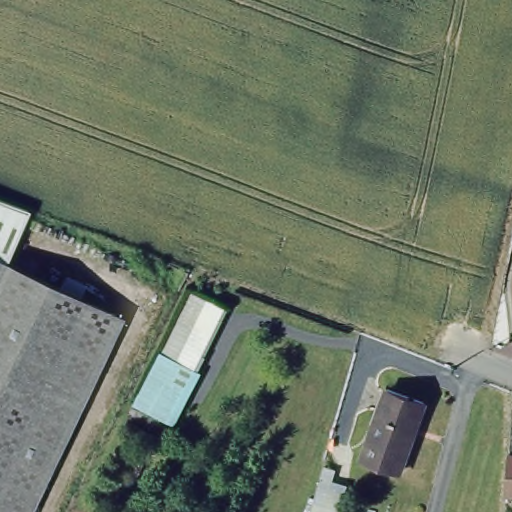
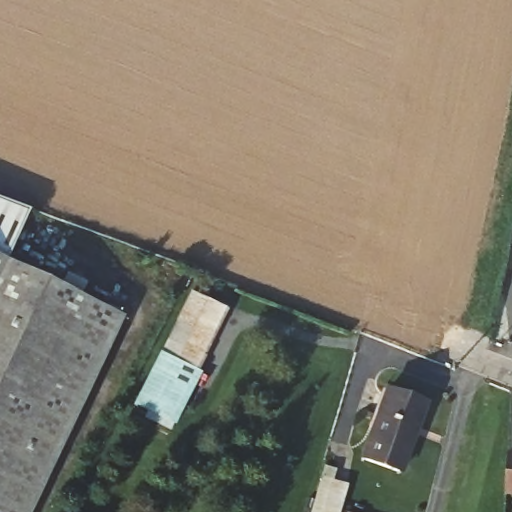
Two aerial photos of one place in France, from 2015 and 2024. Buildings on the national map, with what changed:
unchanged [(29,200),(5,253),(130,305),(34,512),(0,512),(0,189),(29,200)]
unchanged [(135,403),(192,290),(231,309),(179,426),(135,403)]
unchanged [(424,393),(398,464),(360,450),(386,380),(424,393)]
unchanged [(508,494),(511,452),(512,452),(512,494),(508,494)]
unchanged [(314,464),(343,472),(334,502),(331,512),(299,512),(305,494),(314,464)]

